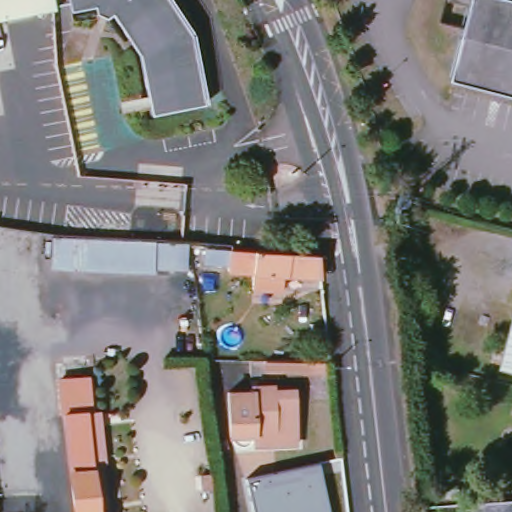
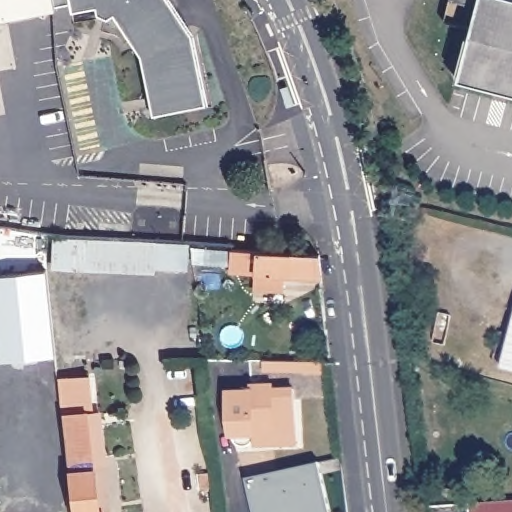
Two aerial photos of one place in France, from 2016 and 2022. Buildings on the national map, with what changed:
unchanged [(58,5),(59,6),(0,17),(0,0),(74,0),(74,2),(58,5)]
unchanged [(110,3),(75,10),(74,2),(74,0),(173,0),(194,33),(210,102),(158,115),(145,55),(110,3)]
unchanged [(456,73),(474,0),(512,0),(512,89),(456,73)]
unchanged [(154,273),(54,269),(55,240),(88,241),(155,243),(186,244),(184,270),(154,269),(154,273)]
unchanged [(321,276),(228,271),(230,249),(319,254),(321,276)]
new [(54,357),(0,361),(0,273),(46,269),(54,357)]
unchanged [(503,369),(512,335),(512,371),(503,369)]
unchanged [(306,370),(265,369),(265,361),(306,362),(326,362),(326,373),(306,372),(306,370)]
unchanged [(86,414),(98,512),(75,512),(63,415),(59,379),(88,377),(91,413),(86,414)]
unchanged [(254,436),(231,437),(228,393),(252,392),(251,387),(273,385),(273,390),(294,389),(296,436),(296,444),(255,446),(254,436)]
unchanged [(108,512),(98,512),(86,414),(91,413),(96,413),(108,512)]
unchanged [(324,464),(333,512),(255,512),(247,479),(324,464)]

